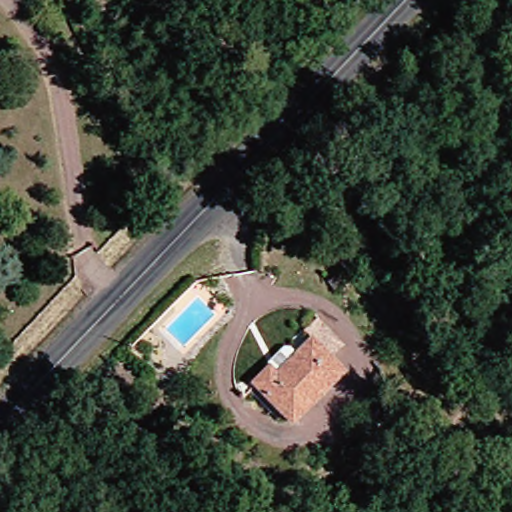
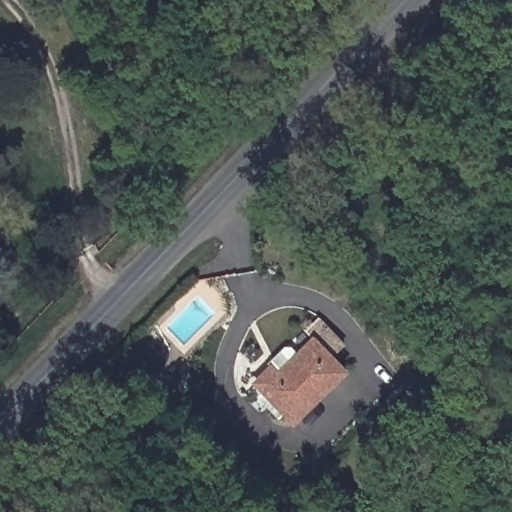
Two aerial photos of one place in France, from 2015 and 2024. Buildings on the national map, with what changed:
unchanged [(264,379),(277,365),(285,372),(322,335),(354,365),(304,417),(264,379)]

